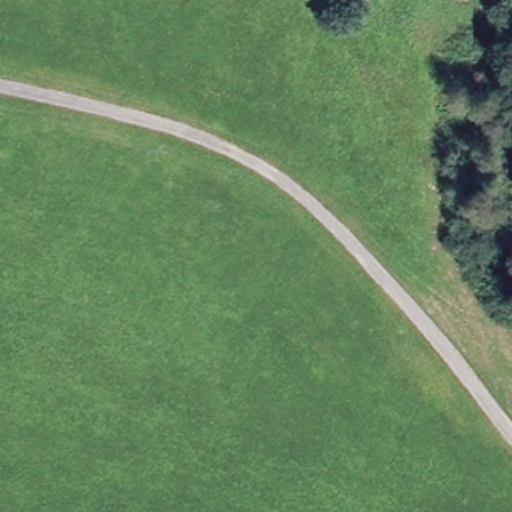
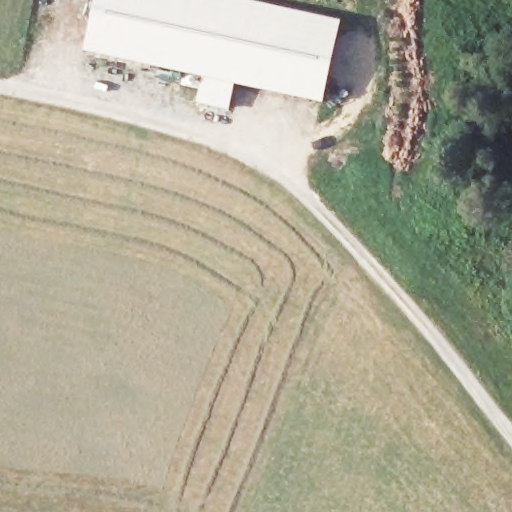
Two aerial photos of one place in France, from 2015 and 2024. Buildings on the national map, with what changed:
new [(94,0),(255,0),(342,19),(324,101),(235,82),(229,110),(196,102),(202,75),(83,49),(94,0)]

